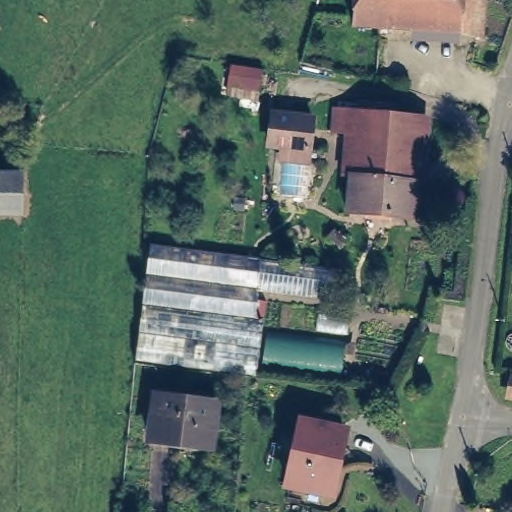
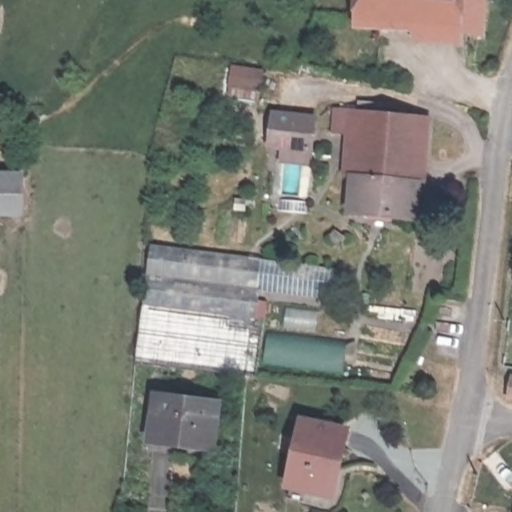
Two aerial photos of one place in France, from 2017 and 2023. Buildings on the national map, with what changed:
unchanged [(482,45),(465,39),(356,31),(356,22),(357,0),(484,0),(482,45)]
unchanged [(233,68),(263,72),(259,104),(229,100),(233,68)]
unchanged [(422,216),(353,208),(358,154),(360,132),(338,130),(340,105),(431,114),(427,160),(424,190),(422,216)]
unchanged [(319,120),(315,152),(276,147),(280,114),(319,120)]
unchanged [(26,207),(0,207),(0,173),(27,174),(26,207)]
unchanged [(253,372),(133,361),(146,240),(333,267),(328,302),(263,295),(253,372)]
unchanged [(269,325),(349,337),(344,373),(263,361),(269,325)]
unchanged [(511,392),(512,387),(512,393),(511,392)]
unchanged [(208,447),(147,440),(151,397),(191,402),(193,393),(211,395),(209,405),(213,405),(208,447)]
unchanged [(341,426),(334,463),(328,462),(321,488),(284,481),(298,416),(341,426)]

